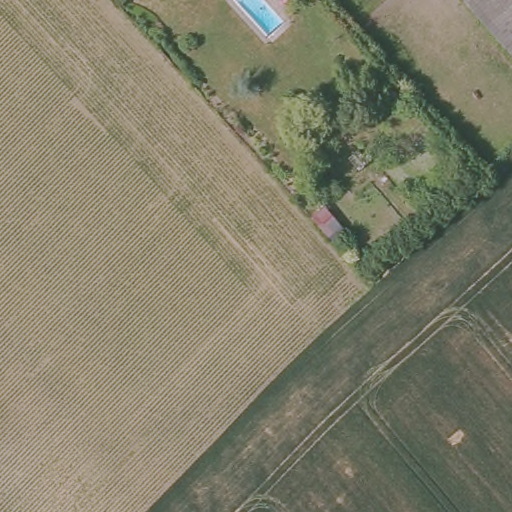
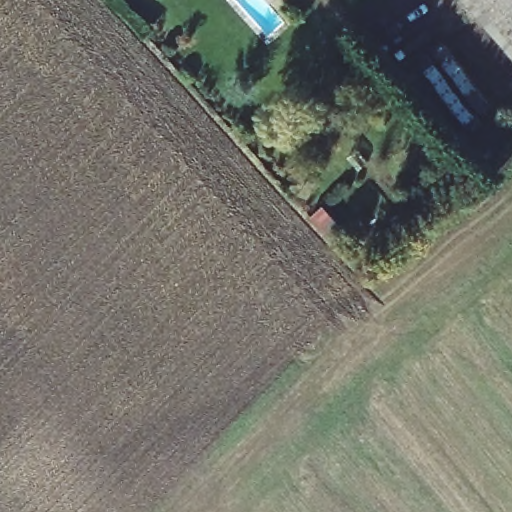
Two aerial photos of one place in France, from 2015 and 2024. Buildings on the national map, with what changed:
unchanged [(462,0),(512,0),(512,55),(462,0)]

